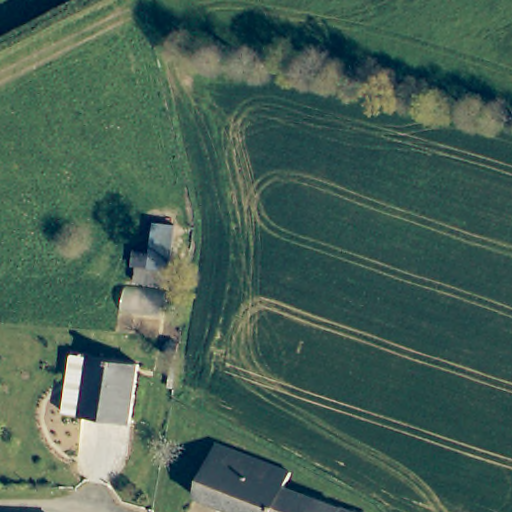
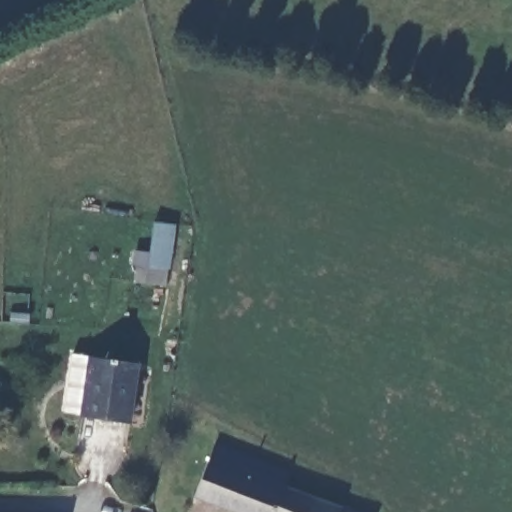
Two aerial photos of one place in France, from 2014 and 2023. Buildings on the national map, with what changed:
unchanged [(146,263),(152,220),(171,221),(164,283),(134,279),(134,262),(146,263)]
unchanged [(130,425),(65,417),(72,359),(136,368),(130,425)]
unchanged [(215,444),(288,473),(283,488),(347,512),(233,512),(193,497),(215,444)]

